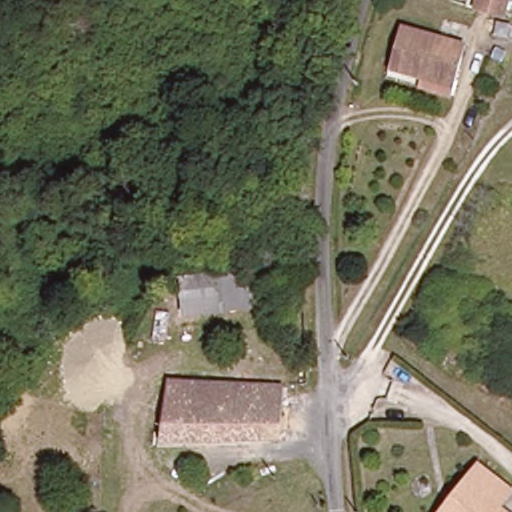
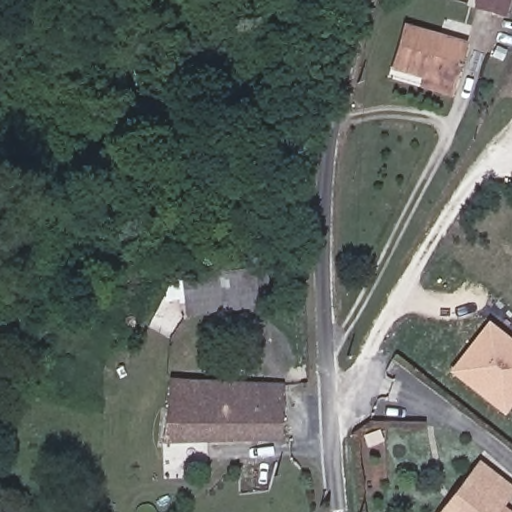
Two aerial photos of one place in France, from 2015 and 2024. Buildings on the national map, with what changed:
unchanged [(497,15),(474,6),(476,0),(502,0),(497,15)]
unchanged [(442,85),(418,78),(385,69),(395,27),(455,44),(459,45),(452,79),(450,87),(442,85)]
unchanged [(175,278),(251,268),(261,309),(180,319),(175,278)]
new [(447,372),(486,321),(510,340),(512,337),(512,406),(503,417),(447,372)]
unchanged [(167,445),(167,381),(286,381),(282,444),(167,445)]
unchanged [(474,463),(509,489),(497,506),(506,512),(438,512),(449,496),(474,463)]

